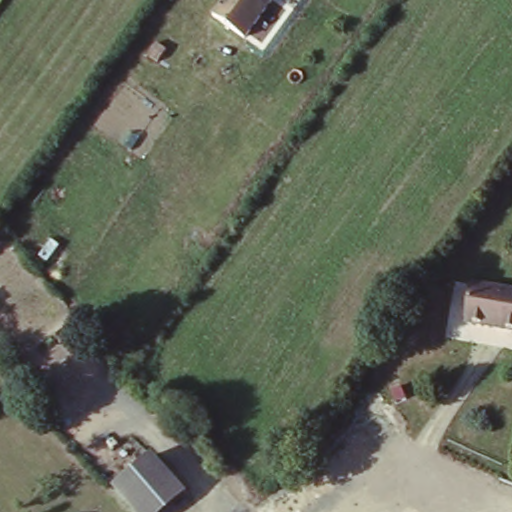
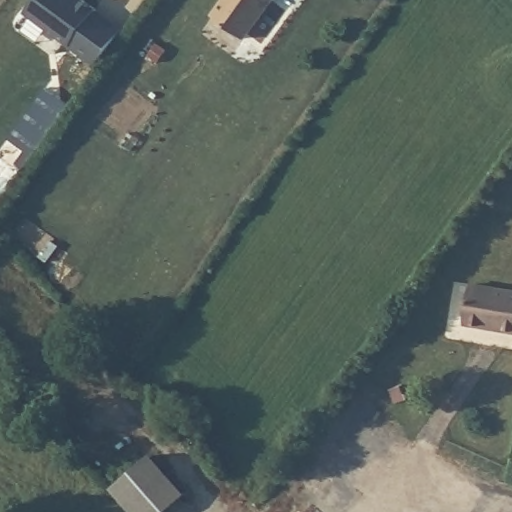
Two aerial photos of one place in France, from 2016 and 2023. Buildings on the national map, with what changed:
new [(100,64),(25,9),(32,0),(90,0),(124,28),(100,64)]
unchanged [(239,38),(206,16),(217,0),(266,0),(239,38)]
unchanged [(512,338),(464,330),(470,290),(512,297),(512,338)]
unchanged [(186,498),(171,512),(126,512),(111,494),(113,492),(151,461),(186,498)]

